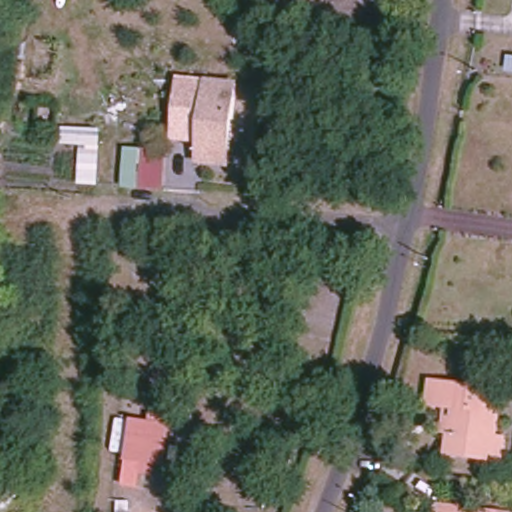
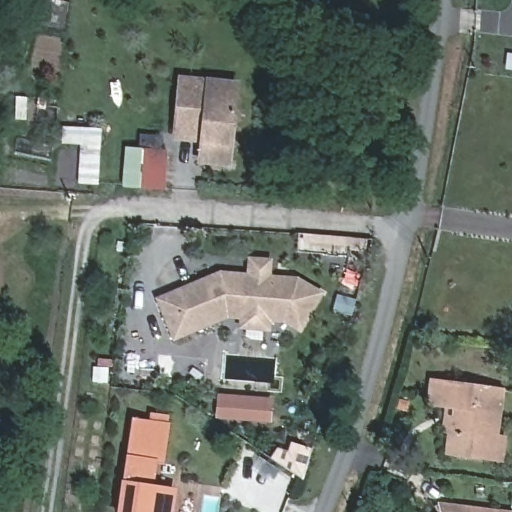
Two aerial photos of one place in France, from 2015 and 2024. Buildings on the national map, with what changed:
unchanged [(495,57),(512,59),(512,75),(490,73),(495,57)]
unchanged [(202,81),(239,84),(229,169),(196,167),(198,121),(175,120),(179,80),(202,81)]
new [(99,185),(79,185),(80,147),(62,145),(64,127),(101,130),(99,185)]
unchanged [(160,151),(157,188),(122,186),(127,148),(160,151)]
new [(227,318),(172,341),(155,298),(219,270),(246,272),(247,257),(271,258),(270,275),(297,276),(323,292),(300,333),(283,323),(270,322),(270,332),(237,328),(237,320),(227,318)]
unchanged [(504,458),(495,457),(451,452),(453,431),(447,430),(449,406),(431,403),(434,382),(502,389),(498,436),(507,437),(504,458)]
new [(215,417),(217,394),(272,398),(271,422),(215,417)]
unchanged [(153,415),(164,417),(162,425),(169,426),(161,480),(141,477),(142,465),(127,462),(134,421),(152,423),(153,415)]
new [(116,512),(121,481),(177,488),(173,512),(116,512)]
unchanged [(438,512),(439,504),(497,512),(438,512)]

